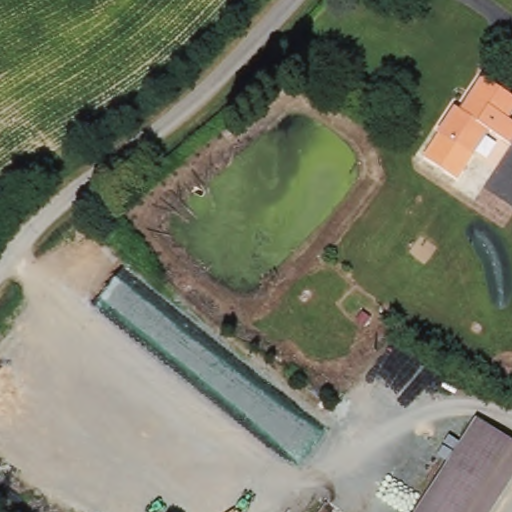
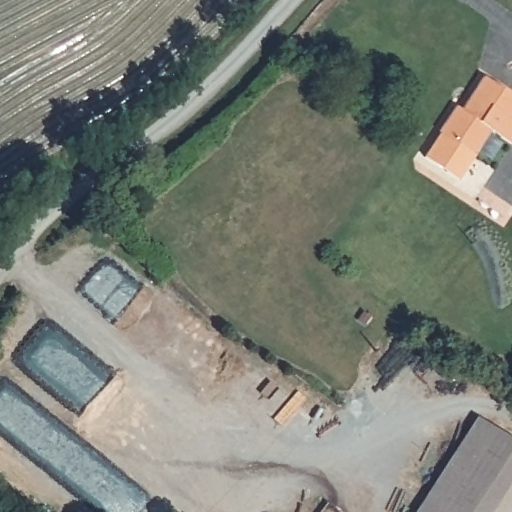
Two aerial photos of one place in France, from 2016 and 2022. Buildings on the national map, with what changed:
unchanged [(512,92),(512,112),(509,116),(512,118),(512,140),(491,127),(474,150),(474,151),(459,176),(424,154),(439,129),(455,105),(468,113),(479,97),(472,91),(484,75),(512,92)]
unchanged [(489,424),(512,440),(512,469),(483,512),(430,512),(436,502),(489,424)]

